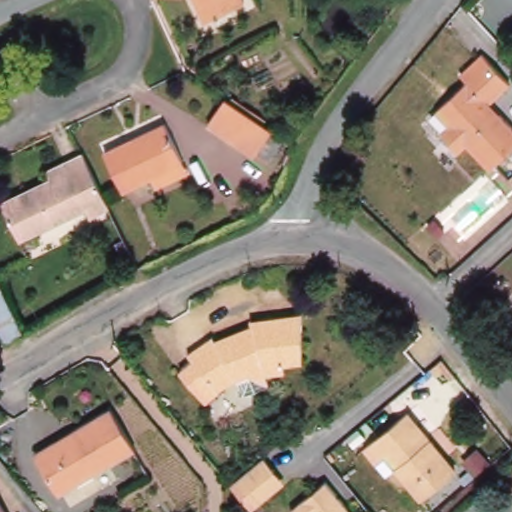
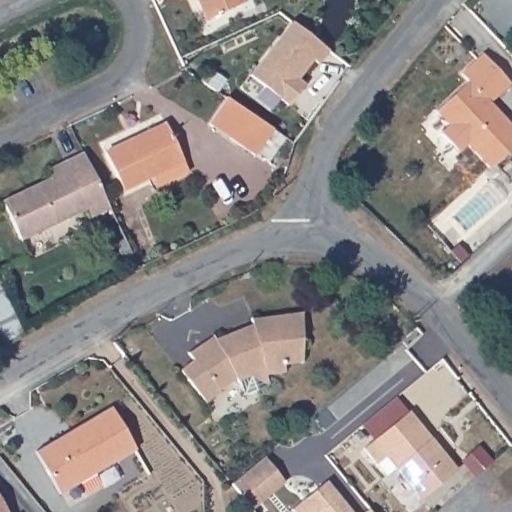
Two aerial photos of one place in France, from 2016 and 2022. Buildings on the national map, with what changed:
unchanged [(240,3),(201,21),(192,0),(239,0),(240,3)]
new [(291,23),(328,52),(318,65),(313,62),(298,81),(305,86),(288,107),(250,77),(291,23)]
unchanged [(460,74),(482,54),(509,84),(484,107),(493,116),(496,113),(512,130),(512,148),(489,170),(466,145),(457,154),(438,134),(447,126),(435,112),(467,82),(460,74)]
unchanged [(220,99),(281,139),(265,162),(252,154),(250,156),(204,125),(220,99)]
unchanged [(160,124),(184,174),(152,189),(147,178),(120,192),(100,153),(160,124)]
unchanged [(44,172),(79,155),(105,210),(87,219),(83,210),(16,242),(0,208),(0,201),(46,180),(44,172)]
unchanged [(125,240),(137,263),(129,267),(117,244),(125,240)]
unchanged [(25,335),(7,345),(0,329),(0,284),(25,335)]
unchanged [(218,344),(252,330),(250,323),(302,318),(302,360),(283,362),(285,373),(266,376),(267,386),(240,389),(239,380),(235,377),(220,388),(221,391),(206,402),(180,372),(194,361),(190,356),(215,339),(218,344)]
unchanged [(135,450),(60,493),(37,454),(54,444),(74,432),(111,410),(135,450)]
unchanged [(408,413),(455,471),(421,499),(396,469),(387,476),(365,450),(408,413)]
unchanged [(232,484),(266,459),(284,484),(252,510),(232,484)]
unchanged [(326,482),(352,512),(292,512),(290,510),(326,482)]
unchanged [(0,512),(0,507),(3,512),(0,512)]
unchanged [(371,512),(367,512),(370,510),(371,512)]

